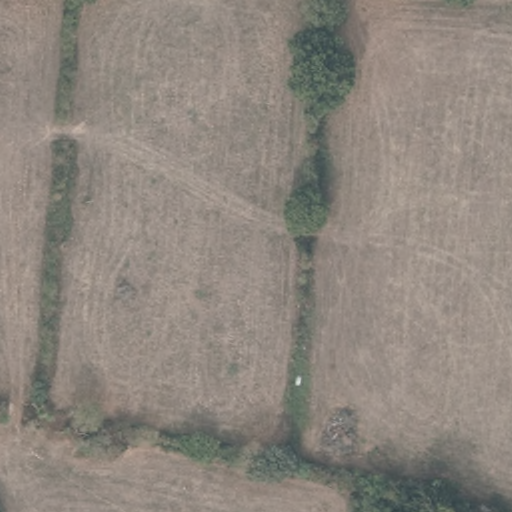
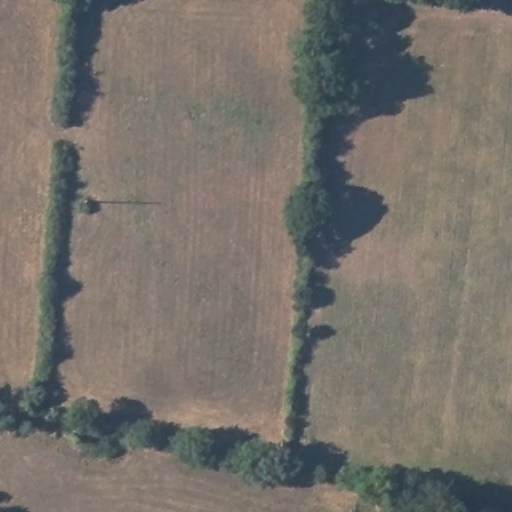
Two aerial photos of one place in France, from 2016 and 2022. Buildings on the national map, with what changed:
[]

